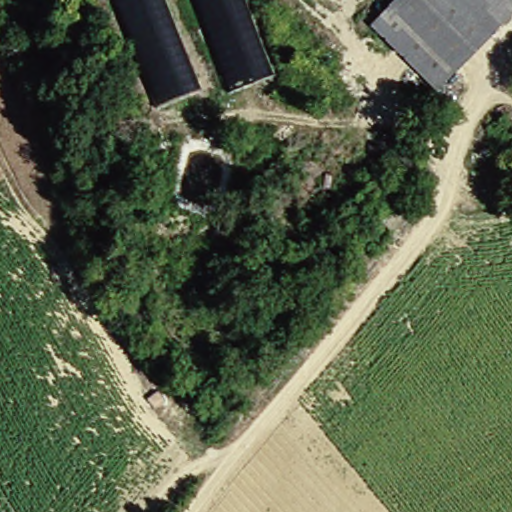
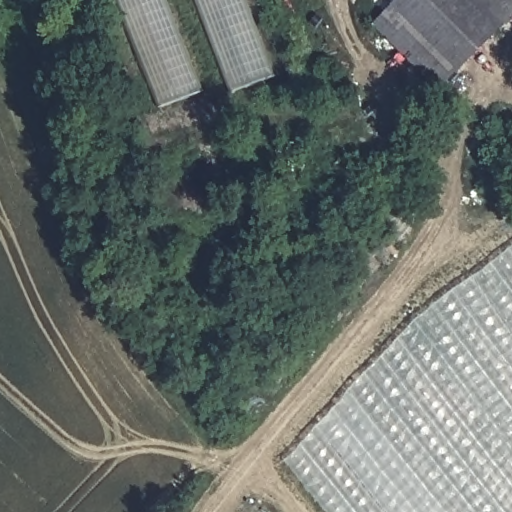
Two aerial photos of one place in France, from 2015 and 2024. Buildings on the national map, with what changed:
unchanged [(202,91),(157,106),(115,0),(166,0),(202,91)]
unchanged [(196,0),(252,0),(279,72),(229,85),(196,0)]
unchanged [(512,18),(442,87),(377,23),(400,0),(512,0),(512,18)]
new [(419,316),(512,248),(512,512),(326,512),(285,460),(419,316)]

